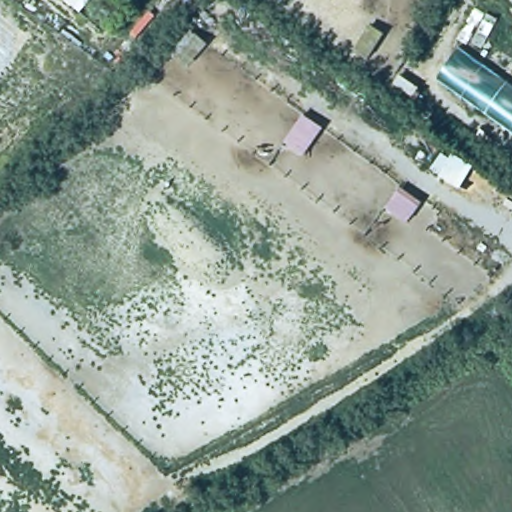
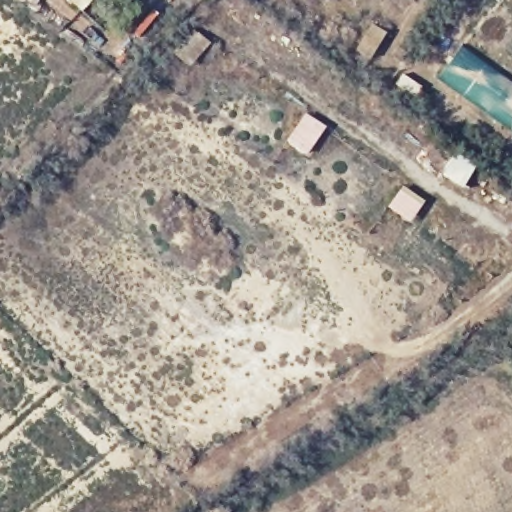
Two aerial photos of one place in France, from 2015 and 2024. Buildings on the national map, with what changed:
unchanged [(512,83),(512,137),(438,86),(465,49),(512,83)]
unchanged [(285,143),(302,116),(324,128),(304,156),(285,143)]
unchanged [(478,163),(461,186),(439,168),(452,147),(478,163)]
unchanged [(385,212),(399,186),(422,201),(408,225),(385,212)]

